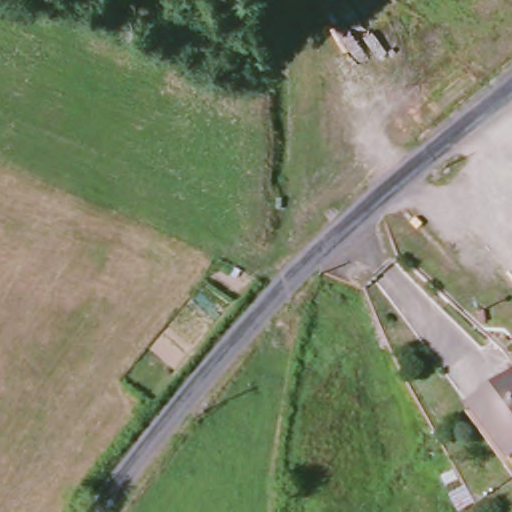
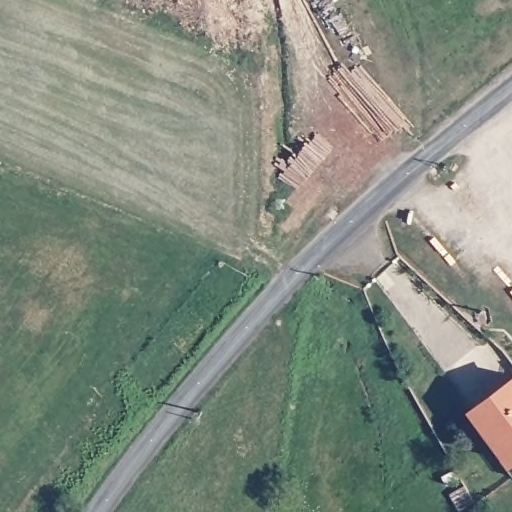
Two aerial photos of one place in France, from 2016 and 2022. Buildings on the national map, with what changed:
unchanged [(485,385),(511,367),(512,368),(512,464),(500,449),(465,400),(485,385)]

